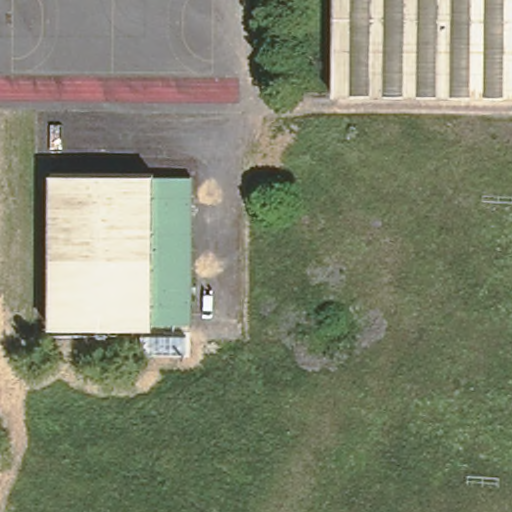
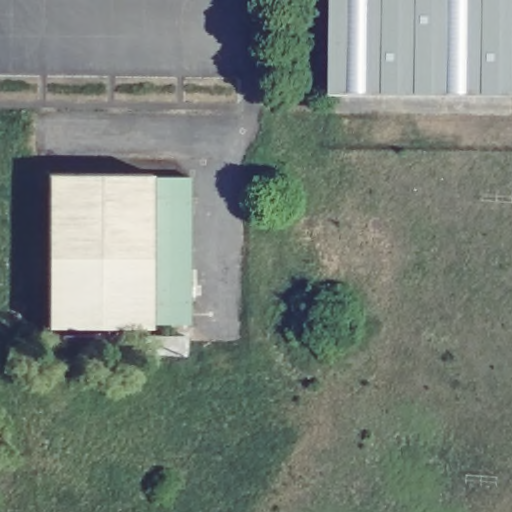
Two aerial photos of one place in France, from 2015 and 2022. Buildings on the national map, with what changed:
unchanged [(327,93),(328,0),(512,0),(512,95),(327,93)]
unchanged [(188,324),(150,324),(150,327),(48,327),(48,174),(151,174),(151,178),(188,178),(188,324)]

